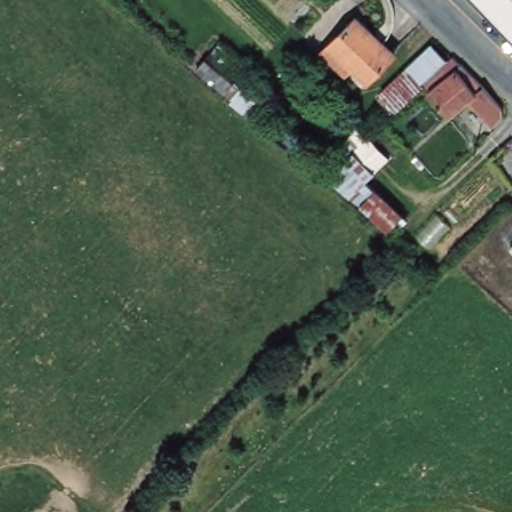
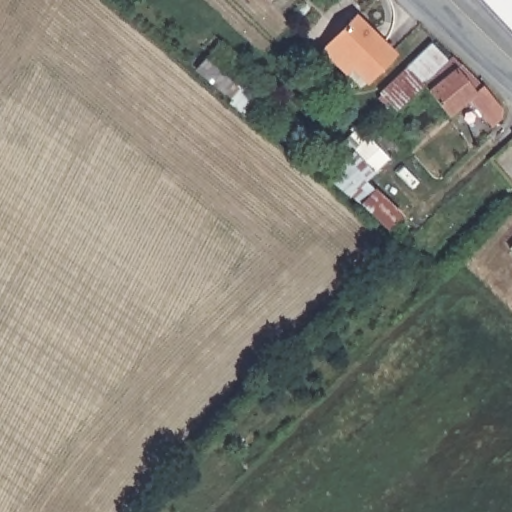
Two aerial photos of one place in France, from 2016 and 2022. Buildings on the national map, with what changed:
unchanged [(512,0),(512,33),(481,0),(512,0)]
unchanged [(393,57),(367,82),(347,62),(341,67),(323,49),(353,19),(393,57)]
unchanged [(448,56),(451,52),(485,85),(509,113),(493,127),(470,103),(452,118),(426,86),(397,111),(380,91),(432,41),(448,56)]
unchanged [(385,225),(373,215),(360,201),(358,202),(356,204),(355,205),(352,202),(331,181),(332,180),(334,177),(327,170),(343,155),(361,136),(376,150),(370,157),(385,172),(373,185),(400,209),(385,225)]

